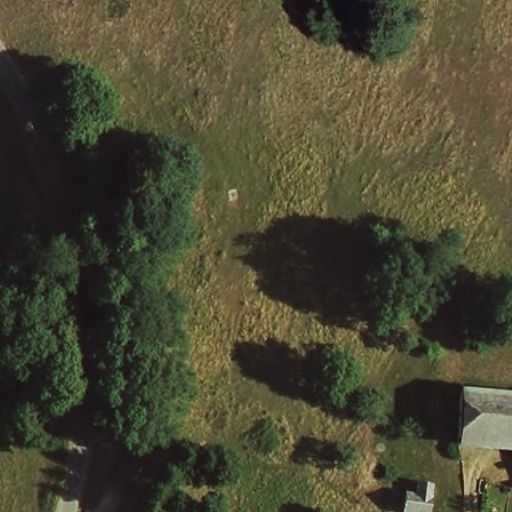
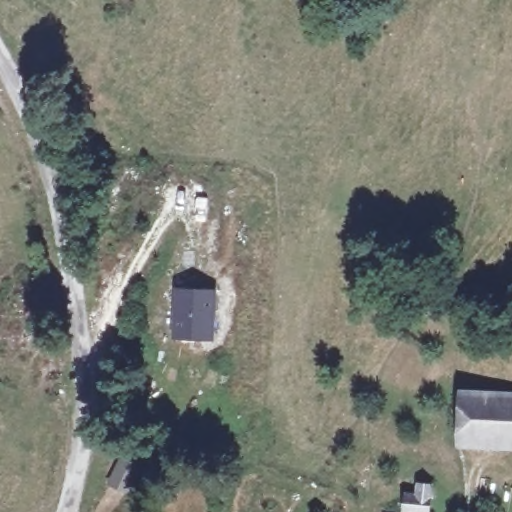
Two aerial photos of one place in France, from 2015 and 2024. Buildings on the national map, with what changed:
new [(175,289),(217,290),(214,342),(172,339),(175,289)]
unchanged [(512,395),(512,442),(462,440),(463,394),(512,395)]
unchanged [(121,480),(132,458),(149,466),(138,488),(121,480)]
unchanged [(426,484),(441,484),(439,512),(409,512),(411,495),(425,496),(426,484)]

